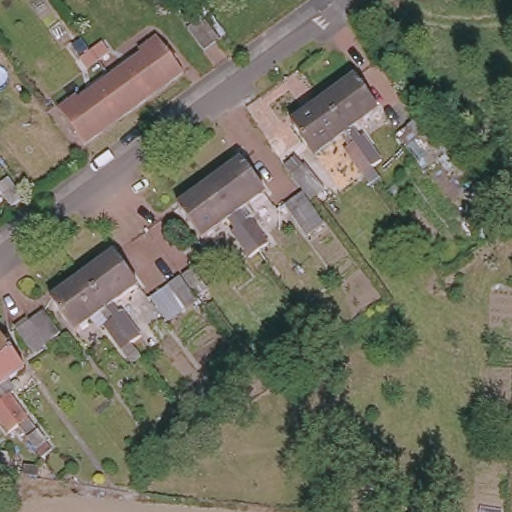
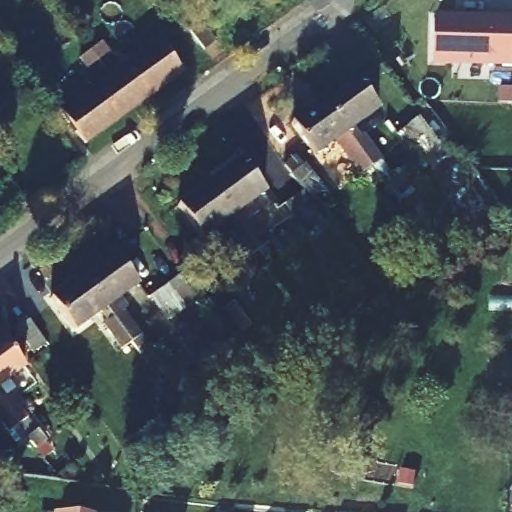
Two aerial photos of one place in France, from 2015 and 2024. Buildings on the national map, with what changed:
new [(490,66),(490,63),(433,61),(435,19),(455,20),(455,22),(462,22),(462,20),(487,20),(487,16),(512,16),(512,67),(490,66)]
unchanged [(102,41),(110,51),(98,60),(87,67),(80,57),(91,50),(102,41)]
unchanged [(160,41),(183,73),(135,109),(111,76),(160,41)]
unchanged [(61,113),(111,76),(135,109),(85,145),(61,113)]
unchanged [(321,100),(354,76),(378,109),(350,129),(357,139),(362,136),(380,160),(370,168),(321,100)]
unchanged [(370,168),(361,174),(343,149),(322,165),(315,154),(312,155),(290,122),(321,100),(370,168)]
unchanged [(283,161),(295,154),(311,178),(319,173),(326,183),(307,196),(325,219),(309,232),(282,196),(266,174),(278,166),(279,165),(295,188),(299,184),(283,161)]
unchanged [(208,182),(239,159),(263,193),(237,212),(245,221),(248,219),(265,243),(256,250),(208,182)]
unchanged [(11,205),(0,189),(0,181),(8,175),(23,196),(11,205)]
unchanged [(256,250),(247,256),(230,232),(221,238),(215,228),(200,238),(176,205),(208,182),(256,250)]
unchanged [(81,274),(111,252),(136,286),(122,296),(129,305),(120,311),(138,336),(130,342),(81,274)]
unchanged [(93,317),(73,332),(49,298),(81,274),(130,342),(120,349),(102,325),(100,326),(93,317)]
unchanged [(193,299),(181,308),(165,286),(178,277),(193,299)]
unchanged [(166,318),(151,296),(162,288),(178,309),(166,318)]
unchanged [(13,329),(26,320),(40,310),(57,333),(43,343),(42,342),(30,351),(13,329)]
unchanged [(3,383),(10,392),(8,394),(25,417),(35,431),(35,430),(43,441),(31,449),(23,436),(15,425),(0,403),(0,336),(23,369),(3,383)]
unchanged [(6,432),(0,423),(0,403),(15,425),(6,432)]

